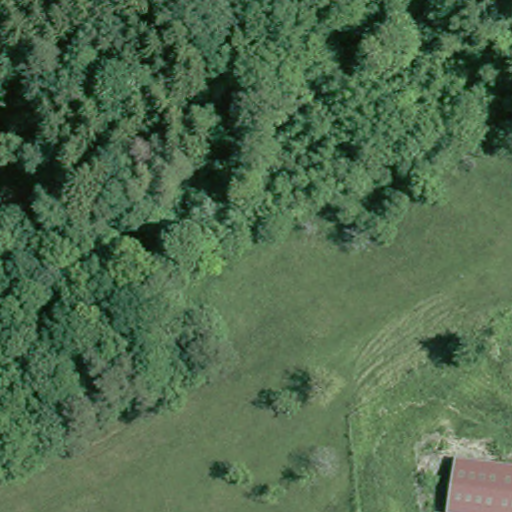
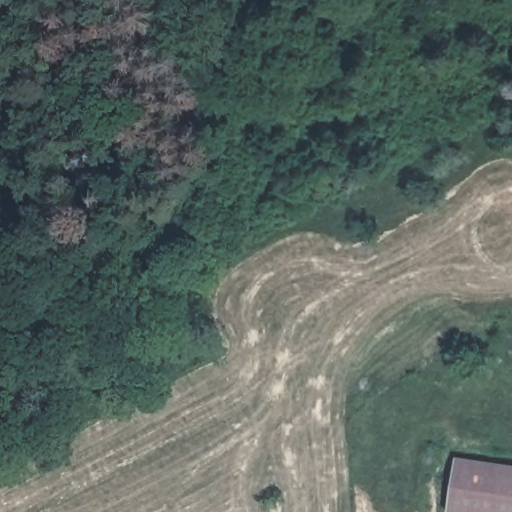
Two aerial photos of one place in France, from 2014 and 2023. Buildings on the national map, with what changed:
unchanged [(512,466),(512,512),(445,512),(452,459),(512,466)]

